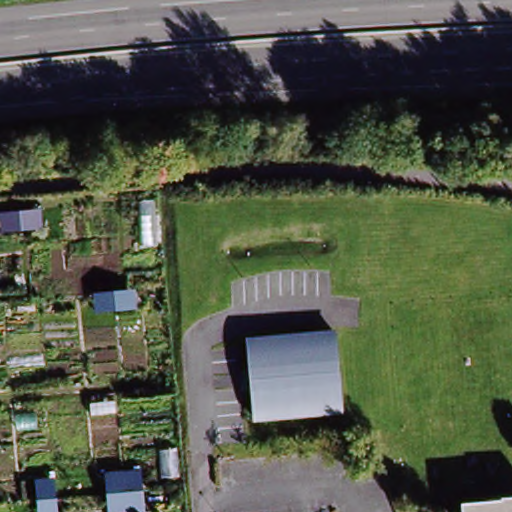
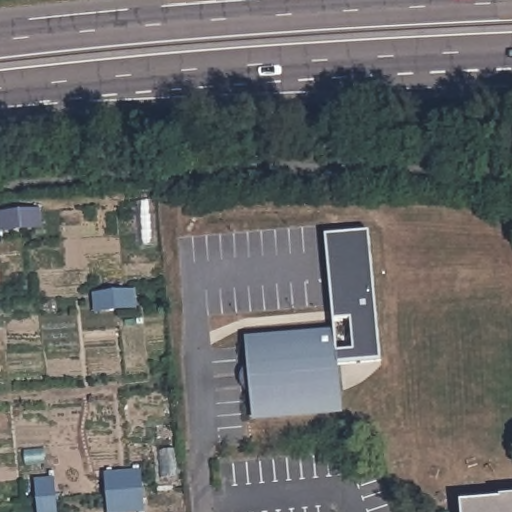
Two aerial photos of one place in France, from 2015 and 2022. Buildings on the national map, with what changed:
unchanged [(45,215),(48,234),(7,238),(5,219),(45,215)]
new [(335,245),(370,241),(384,369),(347,370),(342,338),(335,245)]
unchanged [(140,295),(142,312),(102,316),(100,298),(140,295)]
unchanged [(342,338),(349,415),(261,422),(258,389),(251,390),(250,378),(257,377),(255,345),(342,338)]
unchanged [(143,512),(106,512),(102,476),(139,474),(143,512)]
unchanged [(64,512),(45,512),(42,483),(62,481),(64,512)]
unchanged [(486,497),(512,494),(512,512),(461,512),(460,500),(486,497)]

